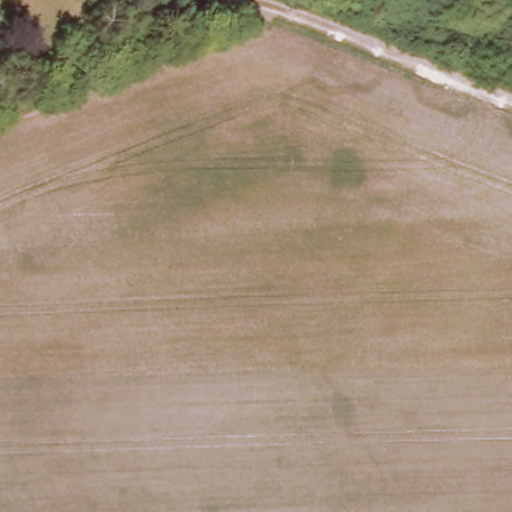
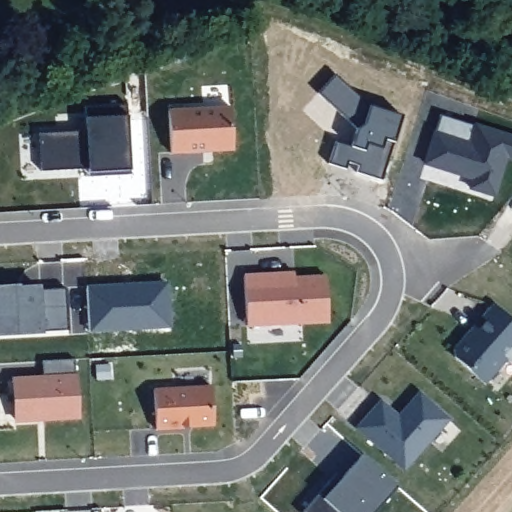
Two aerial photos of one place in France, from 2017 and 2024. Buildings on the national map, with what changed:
new [(351,146),(357,127),(318,94),(335,76),(370,108),(402,117),(393,144),(393,145),(381,179),(356,172),(358,166),(347,162),(346,169),(329,165),(336,143),(351,146)]
new [(87,172),(87,168),(39,171),(38,132),(85,130),(83,106),(125,104),(129,174),(103,175),(87,176),(87,172)]
new [(169,152),(167,110),(229,107),(231,149),(211,150),(201,151),(169,152)]
new [(439,114),(512,137),(512,158),(504,156),(492,195),(469,188),(472,178),(424,163),(439,114)]
new [(293,272),(293,277),(265,279),(265,274),(293,272)]
new [(246,326),(243,275),(265,274),(265,279),(325,276),(327,321),(246,326)]
new [(171,329),(88,333),(85,286),(168,281),(171,329)]
new [(16,288),(37,287),(37,289),(64,288),(66,330),(0,334),(0,288),(16,287),(16,288)]
new [(511,362),(506,358),(483,383),(453,357),(453,349),(461,339),(473,326),(477,330),(486,320),(482,317),(493,303),(512,321),(512,361),(511,362)]
new [(16,380),(41,378),(40,361),(73,358),(76,417),(18,420),(16,380)]
new [(153,388),(210,385),(213,424),(182,426),(182,427),(154,428),(153,388)]
new [(380,402),(400,420),(397,417),(401,412),(419,393),(447,418),(403,468),(356,428),(380,402)]
new [(337,473),(341,477),(361,455),(397,487),(374,512),(302,512),(337,473)]

